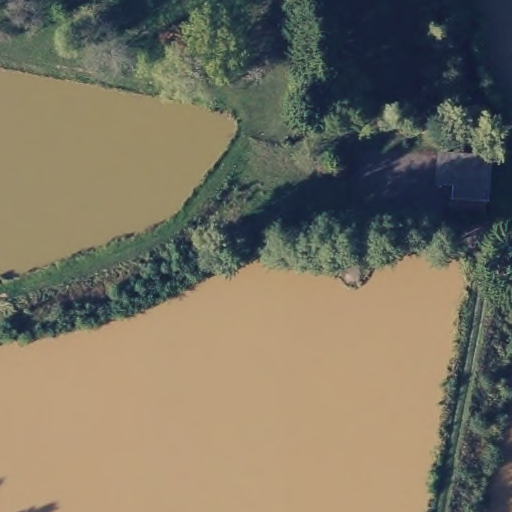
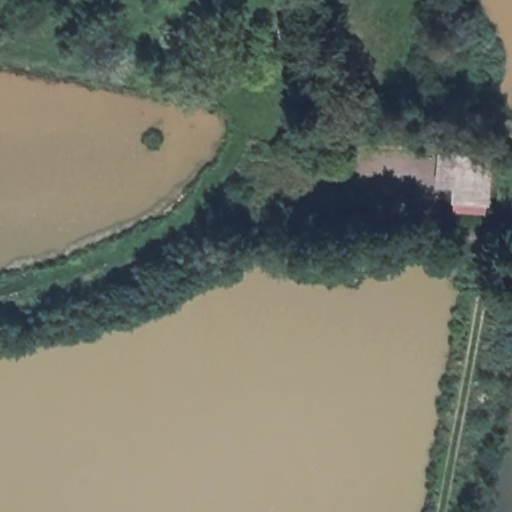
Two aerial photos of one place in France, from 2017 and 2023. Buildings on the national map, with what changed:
unchanged [(486,150),(484,193),(452,193),(453,150),(486,150)]

